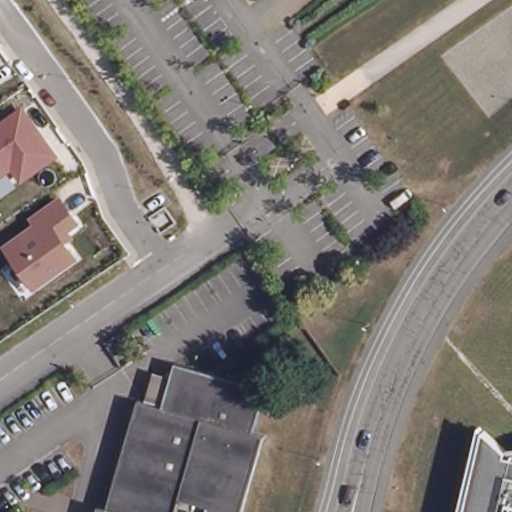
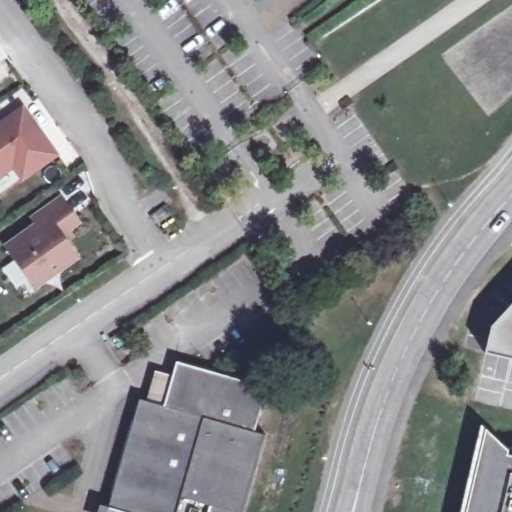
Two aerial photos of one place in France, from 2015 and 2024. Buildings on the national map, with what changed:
unchanged [(12,172),(0,180),(0,123),(23,106),(58,156),(21,184),(12,172)]
unchanged [(34,292),(3,246),(31,225),(28,219),(60,197),(79,225),(69,232),(73,238),(66,242),(78,260),(34,292)]
new [(487,352),(493,325),(512,304),(512,357),(487,352)]
unchanged [(161,404),(171,363),(265,386),(254,428),(266,431),(248,512),(110,512),(138,398),(161,404)]
unchanged [(482,428),(504,449),(504,454),(512,456),(512,512),(462,512),(482,428)]

